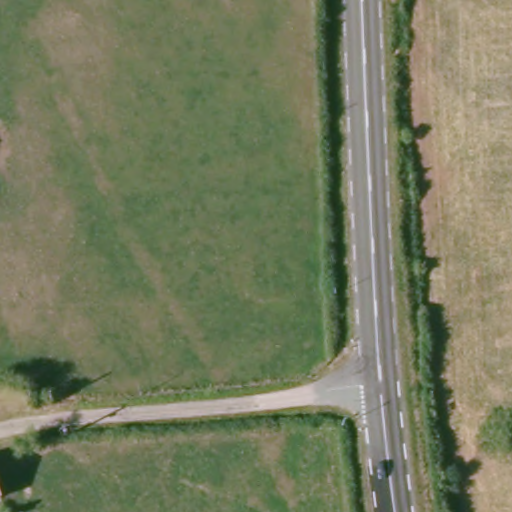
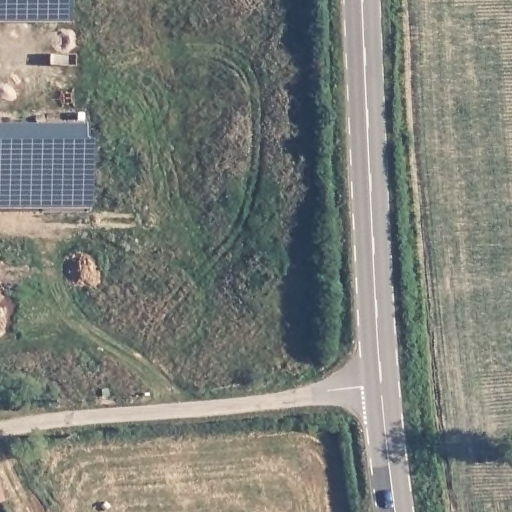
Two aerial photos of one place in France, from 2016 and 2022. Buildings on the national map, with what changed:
new [(69,0),(70,22),(0,22),(0,0),(69,0)]
new [(90,139),(91,209),(0,209),(0,124),(87,123),(90,139)]

